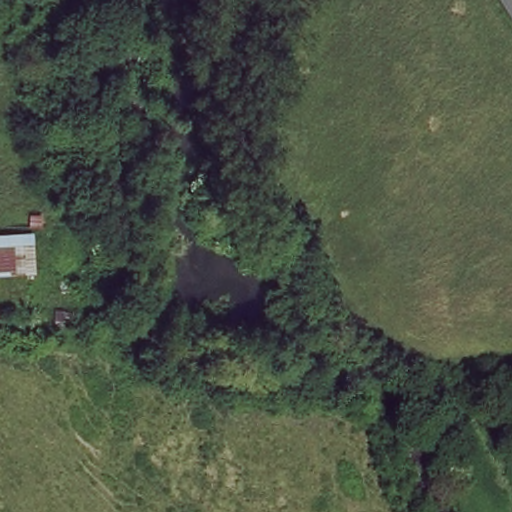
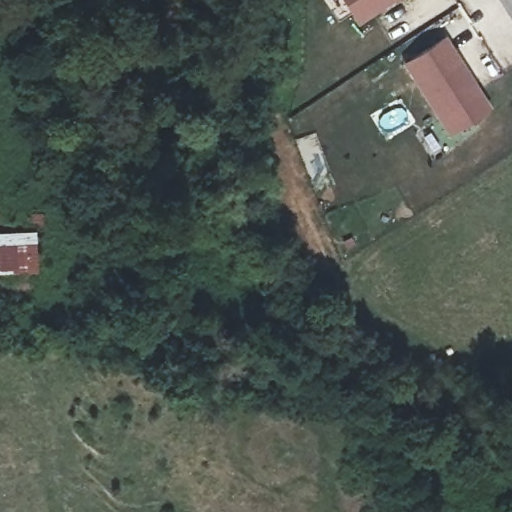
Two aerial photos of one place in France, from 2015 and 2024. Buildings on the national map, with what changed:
new [(345,0),(387,0),(358,19),(345,0)]
new [(444,37),(485,108),(448,130),(406,62),(444,37)]
unchanged [(0,245),(20,244),(33,244),(33,266),(23,268),(0,271),(0,262),(0,245)]

